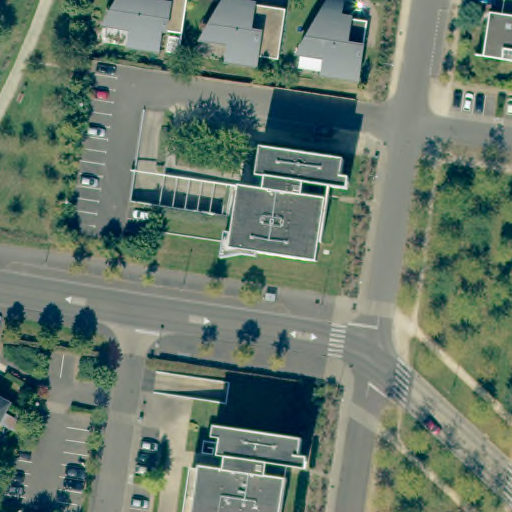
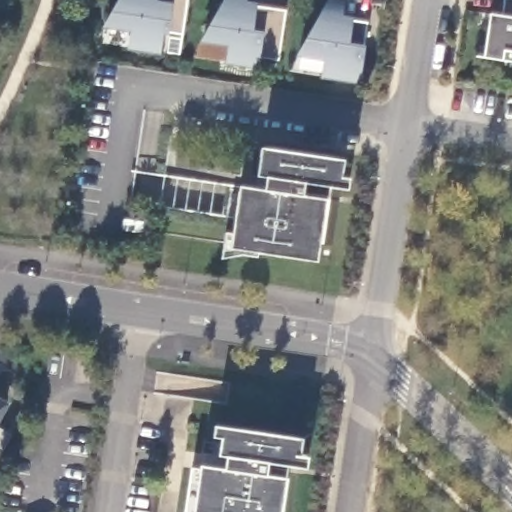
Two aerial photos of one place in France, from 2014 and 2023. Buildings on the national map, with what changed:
unchanged [(172,54),(160,52),(161,43),(154,42),(152,51),(121,46),(125,26),(98,22),(103,13),(110,0),(178,0),(172,54)]
unchanged [(236,8),(245,9),(246,5),(276,9),(270,60),(250,56),(249,65),(218,60),(221,41),(195,37),(209,12),(213,13),(215,6),(212,5),(216,0),(237,0),(236,8)]
unchanged [(341,18),(350,19),(351,14),(368,16),(365,36),(360,76),(322,70),(326,50),(300,46),(313,22),(318,22),(320,15),(318,15),(326,0),(344,0),(341,18)]
unchanged [(512,62),(483,58),(490,14),(502,15),(505,0),(512,0),(512,62)]
unchanged [(227,185),(166,176),(170,150),(231,159),(242,161),(240,185),(264,189),(266,176),(261,175),(256,174),(257,166),(261,146),(297,152),(307,153),(337,158),(339,158),(336,175),(335,186),(333,186),(305,181),(303,193),(320,196),(313,240),(310,259),(251,250),(231,247),(232,242),(220,240),(158,231),(161,205),(223,214),(235,216),(240,187),(227,185)]
unchanged [(310,435),(309,443),(313,444),(310,463),(297,461),(295,461),(280,459),(277,472),(290,474),(285,512),(204,512),(211,463),(237,466),(239,454),(230,453),(235,424),(294,433),(310,435)]

